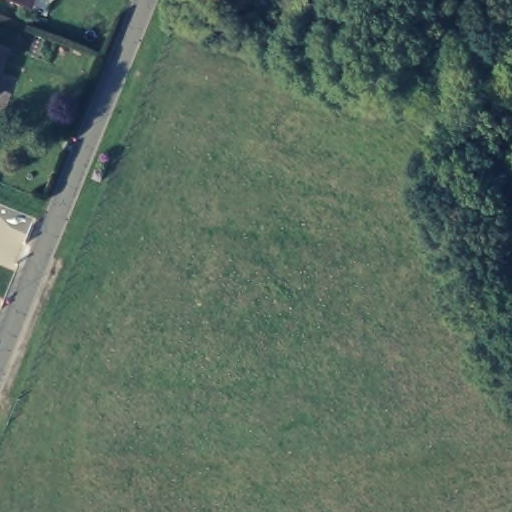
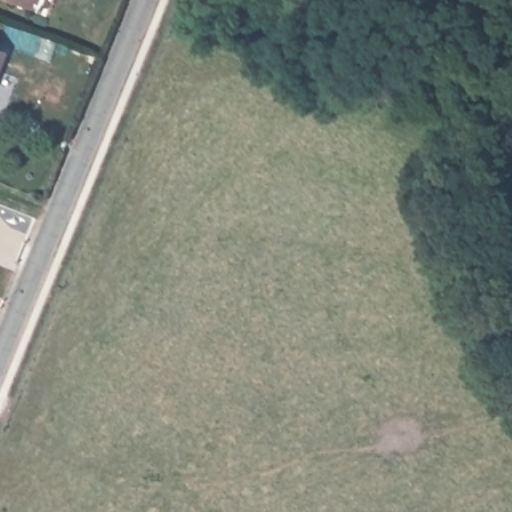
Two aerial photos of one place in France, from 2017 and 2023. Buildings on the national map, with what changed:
unchanged [(2,87),(0,86),(0,49),(14,54),(2,87)]

